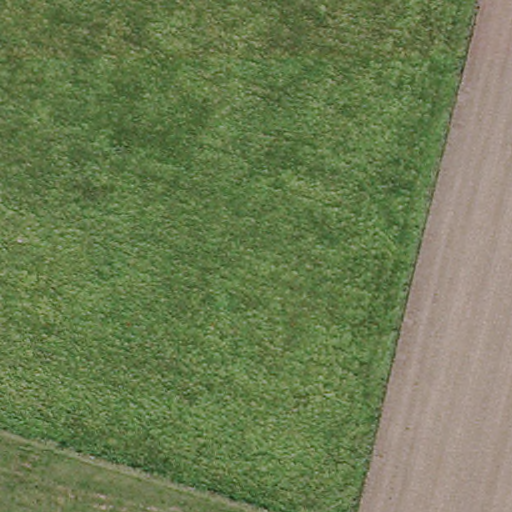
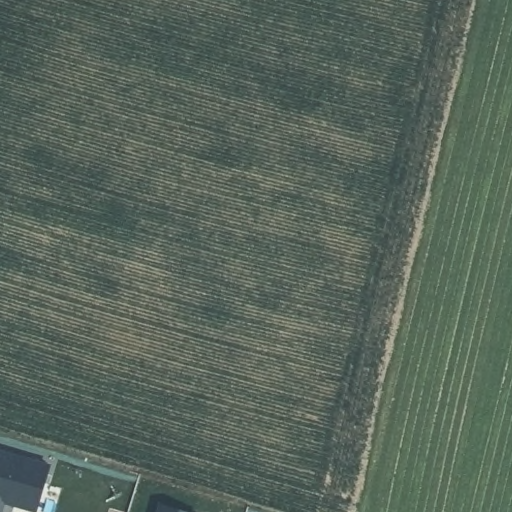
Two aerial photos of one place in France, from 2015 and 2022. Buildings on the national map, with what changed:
new [(47,467),(34,512),(2,503),(0,508),(0,453),(47,467)]
new [(159,506),(181,512),(157,512),(159,506)]

